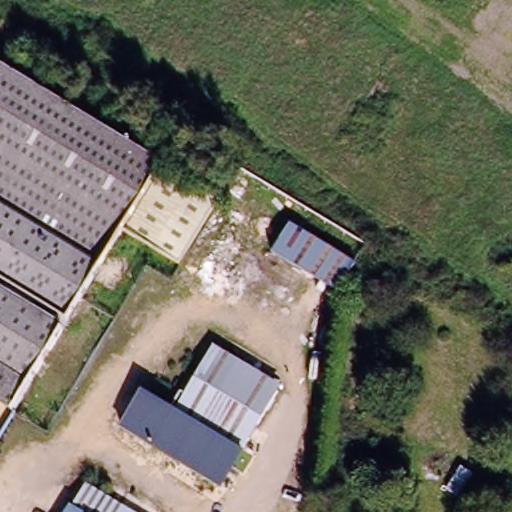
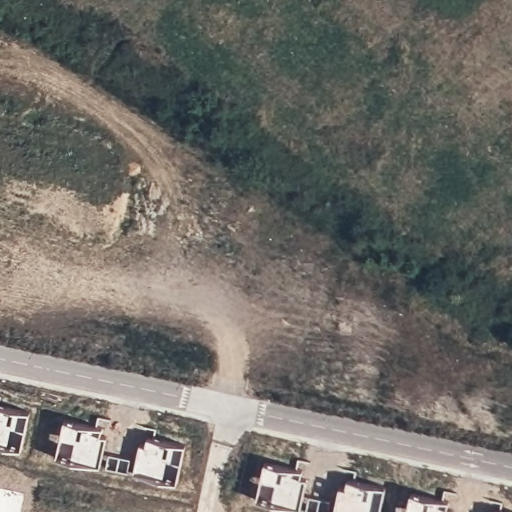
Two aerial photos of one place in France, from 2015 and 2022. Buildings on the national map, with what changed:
demolished [(129,228),(122,224),(11,406),(0,423),(0,58),(170,161),(129,228)]
demolished [(220,192),(179,259),(129,228),(170,161),(220,192)]
demolished [(290,217),(355,256),(339,284),(274,246),(290,217)]
demolished [(204,342),(272,382),(217,476),(116,417),(138,380),(172,400),(204,342)]
demolished [(142,512),(57,512),(80,475),(142,512)]

